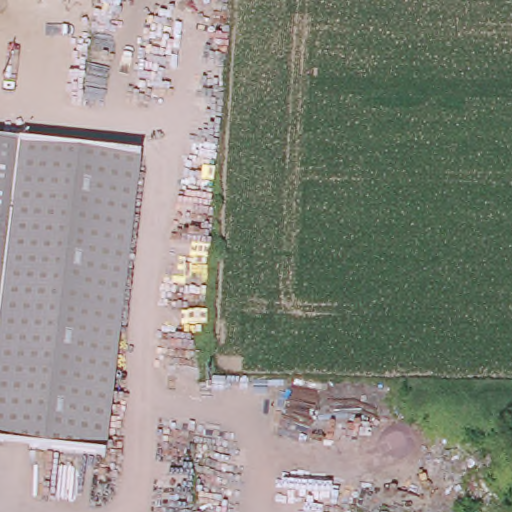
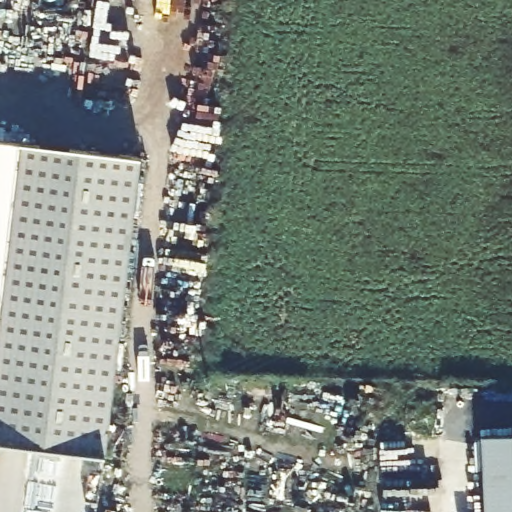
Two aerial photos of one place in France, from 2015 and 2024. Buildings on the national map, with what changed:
unchanged [(130,157),(89,462),(0,450),(0,139),(130,157)]
new [(485,437),(512,436),(512,512),(488,512),(485,437)]

